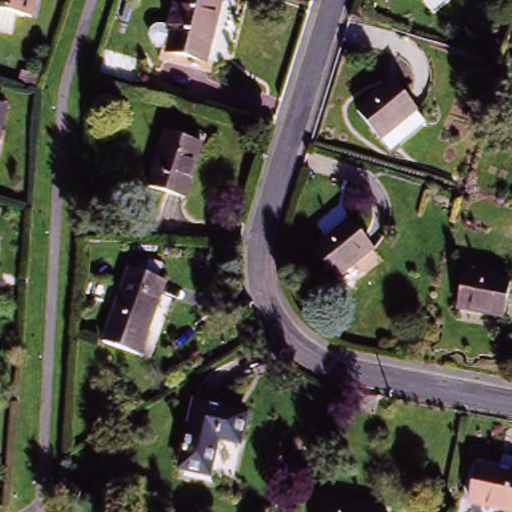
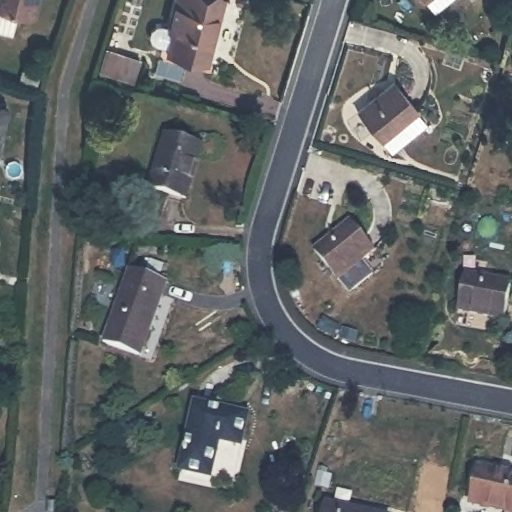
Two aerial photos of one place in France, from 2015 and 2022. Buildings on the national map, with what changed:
unchanged [(0,0),(37,0),(31,24),(14,20),(10,39),(0,37),(0,0)]
unchanged [(159,28),(164,29),(167,19),(171,0),(210,0),(219,2),(205,67),(167,59),(169,51),(159,48),(154,45),(150,41),(151,35),(154,30),(159,28)]
unchanged [(425,3),(422,0),(428,0),(425,3)]
unchanged [(39,83),(23,79),(26,69),(41,72),(39,83)]
unchanged [(388,156),(364,126),(399,97),(423,126),(388,156)]
unchanged [(0,145),(0,115),(7,117),(0,145)]
unchanged [(182,202),(147,191),(162,140),(198,151),(182,202)]
unchanged [(374,252),(341,279),(317,250),(350,222),(374,252)]
unchanged [(465,276),(510,284),(504,321),(457,312),(465,276)]
unchanged [(125,277),(162,288),(141,361),(104,350),(125,277)]
unchanged [(250,422),(240,453),(215,445),(204,480),(175,472),(197,405),(250,422)]
unchanged [(493,512),(478,508),(487,472),(512,478),(512,512),(493,512)]
unchanged [(337,512),(325,512),(326,510),(337,512)]

